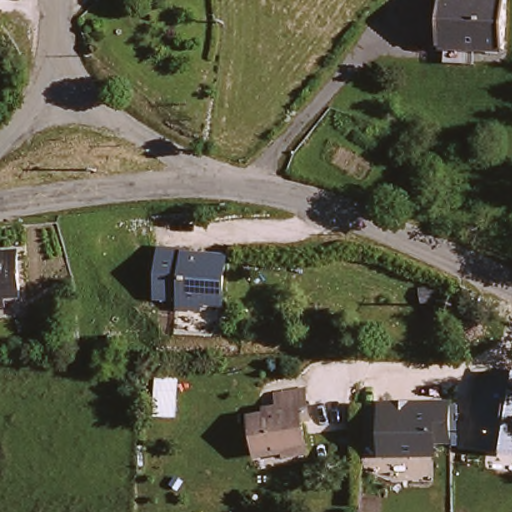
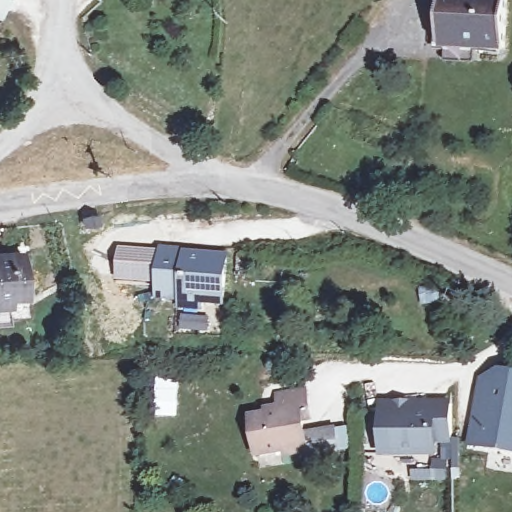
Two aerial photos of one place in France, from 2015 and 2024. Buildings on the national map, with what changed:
unchanged [(505,51),(440,49),(441,0),(491,0),(507,1),(505,51)]
unchanged [(192,251),(192,257),(232,261),(228,302),(162,300),(165,251),(192,251)]
unchanged [(20,253),(24,296),(10,297),(10,306),(0,307),(0,255),(20,253)]
new [(502,370),(512,372),(512,450),(472,442),(481,398),(487,367),(502,370)]
unchanged [(285,419),(282,400),(310,398),(312,414),(305,413),(308,450),(260,457),(258,422),(285,419)]
unchanged [(454,404),(453,443),(439,443),(438,458),(382,456),(383,402),(454,404)]

